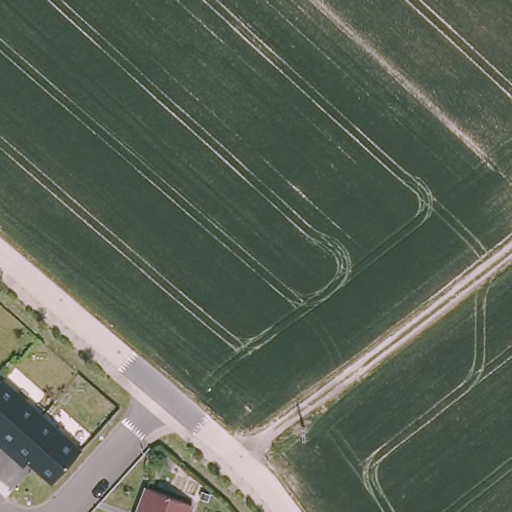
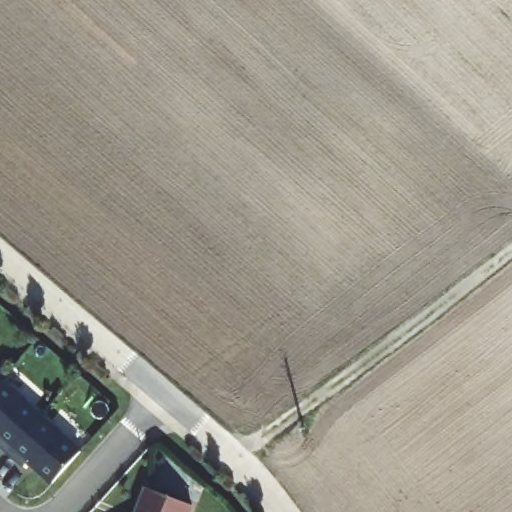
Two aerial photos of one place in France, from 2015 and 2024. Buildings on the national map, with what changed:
unchanged [(50,484),(26,462),(22,468),(0,448),(0,380),(79,453),(50,484)]
unchanged [(189,512),(137,512),(147,487),(192,505),(189,512)]

